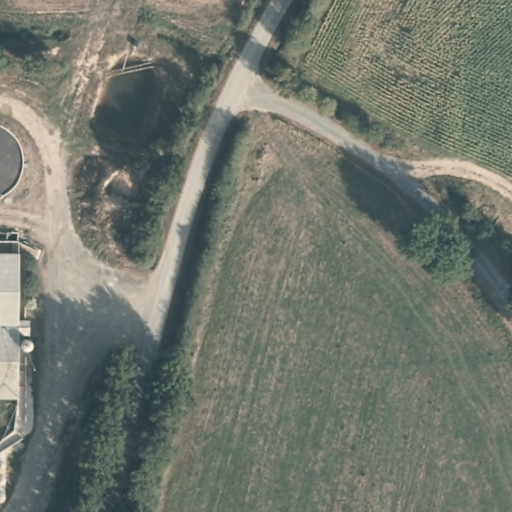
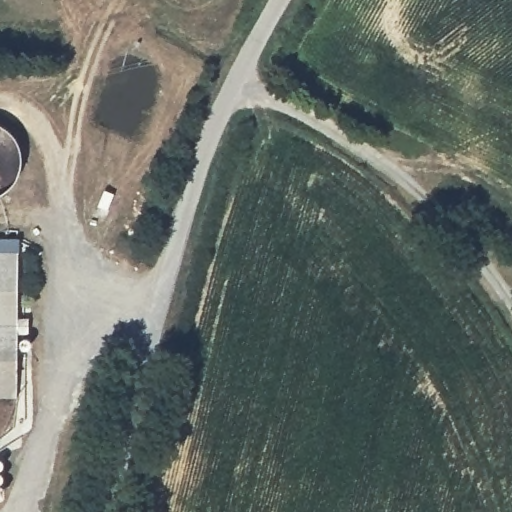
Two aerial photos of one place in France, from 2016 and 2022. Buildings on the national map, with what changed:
unchanged [(34,320),(34,330),(23,330),(24,395),(0,396),(0,260),(24,260),(25,320),(34,320)]

